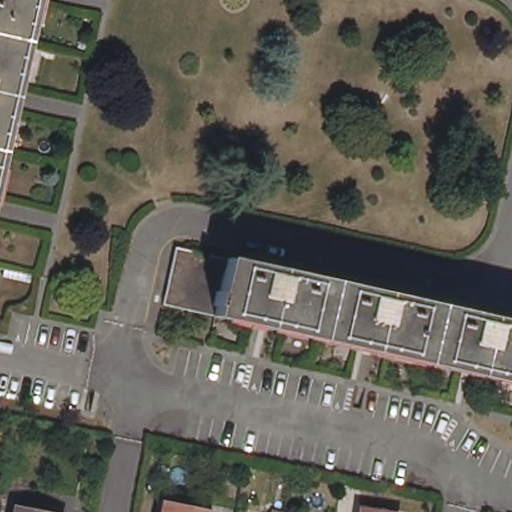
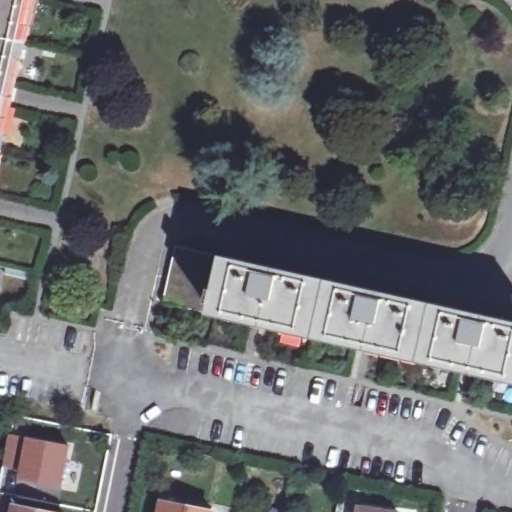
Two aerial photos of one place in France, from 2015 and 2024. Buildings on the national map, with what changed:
unchanged [(0,0),(36,0),(0,158),(0,0)]
unchanged [(229,254),(216,313),(174,303),(187,245),(229,254)]
unchanged [(216,313),(229,254),(512,318),(512,381),(216,313)]
new [(74,450),(66,489),(7,476),(15,438),(74,450)]
unchanged [(219,505),(218,512),(166,512),(169,496),(219,505)]
new [(397,512),(357,512),(357,506),(397,512)]
unchanged [(38,512),(15,512),(15,507),(38,512)]

